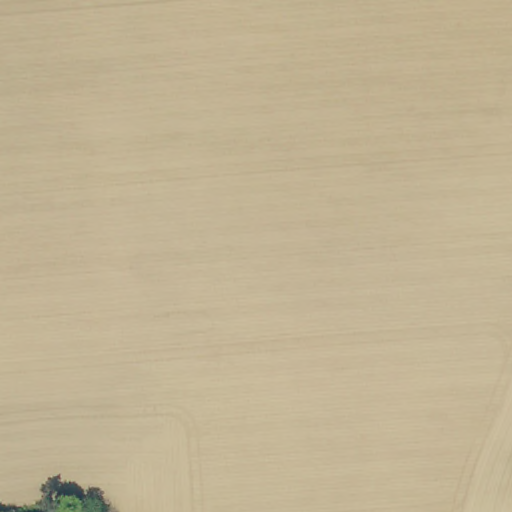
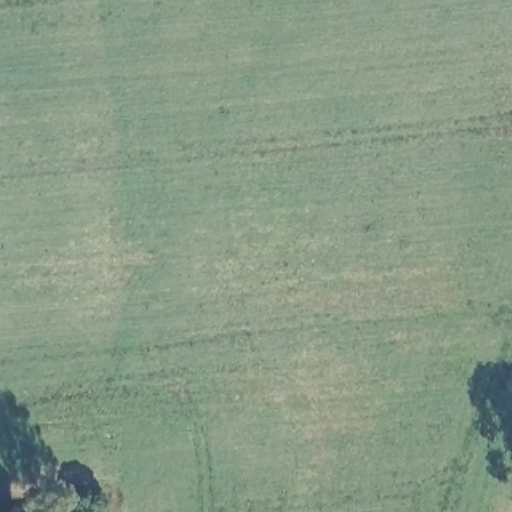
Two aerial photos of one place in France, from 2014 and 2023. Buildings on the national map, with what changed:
unchanged [(54,512),(14,512),(14,508),(29,509),(55,511),(54,512)]

